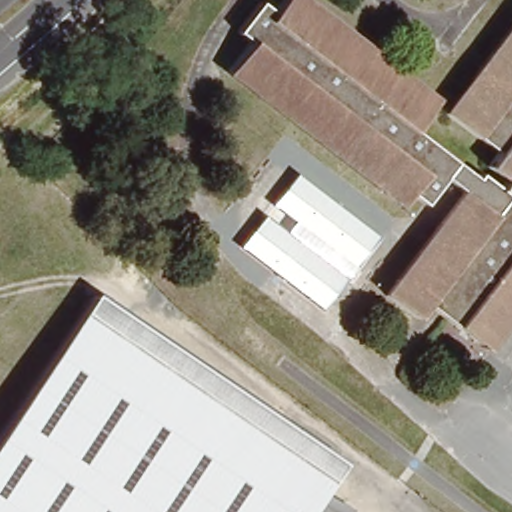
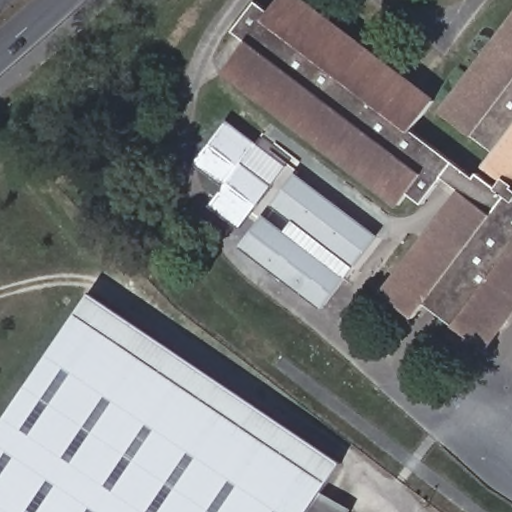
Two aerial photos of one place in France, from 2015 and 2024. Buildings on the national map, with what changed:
unchanged [(225,73),(247,45),(234,35),(259,1),(272,11),(280,0),(298,0),(311,10),(249,91),(225,73)]
unchanged [(483,350),(426,306),(415,320),(384,297),(462,195),(444,180),(424,202),(412,194),(402,206),(249,91),(311,10),(431,102),(411,130),(473,177),(478,174),(498,189),(504,181),(484,165),(493,155),(444,116),(512,26),(512,312),(483,350)]
new [(242,227),(210,205),(224,184),(196,162),(228,121),(286,166),(242,227)]
unchanged [(272,205),(296,174),(376,236),(320,310),(239,247),(263,215),(285,231),(294,220),(272,205)]
unchanged [(95,297),(342,467),(330,485),(84,313),(95,297)]
unchanged [(330,485),(322,496),(311,512),(0,512),(0,432),(84,313),(330,485)]
unchanged [(345,512),(311,512),(322,496),(345,512)]

